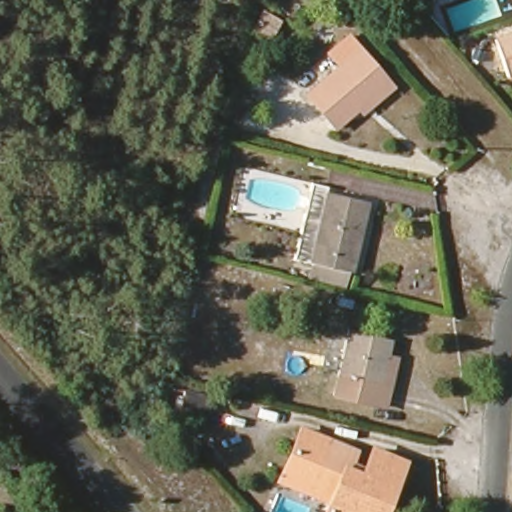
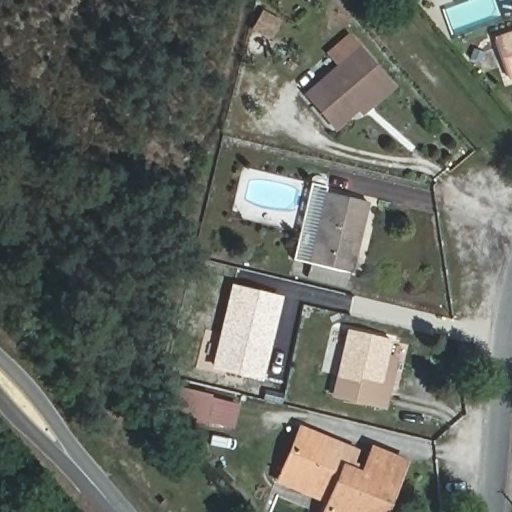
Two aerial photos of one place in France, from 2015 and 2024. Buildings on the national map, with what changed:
unchanged [(270,38),(253,29),(263,11),(280,21),(270,38)]
unchanged [(508,77),(495,39),(512,33),(512,76),(508,77)]
unchanged [(358,108),(335,127),(306,92),(339,65),(328,53),(349,36),(386,80),(392,87),(362,112),(358,108)]
unchanged [(304,273),(309,256),(296,253),(315,179),(327,181),(326,186),(368,197),(351,266),(348,265),(344,283),(304,273)]
new [(283,296),(262,381),(211,368),(231,283),(283,296)]
unchanged [(385,409),(333,396),(349,330),(390,340),(387,354),(397,356),(389,390),(385,409)]
new [(233,430),(171,415),(179,387),(240,405),(233,430)]
unchanged [(331,501),(286,482),(303,440),(352,460),(347,473),(362,479),(372,455),(403,466),(393,491),(384,512),(327,512),(331,501)]

